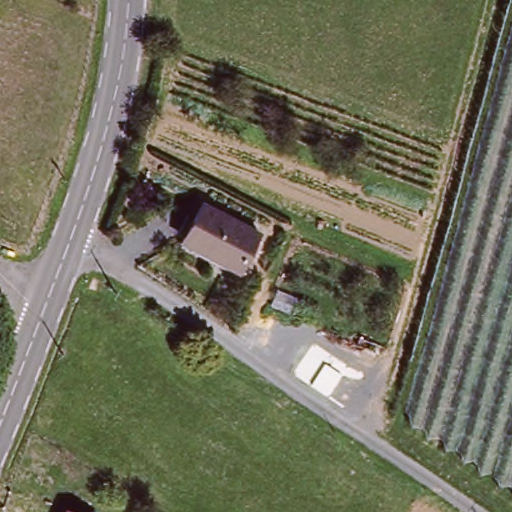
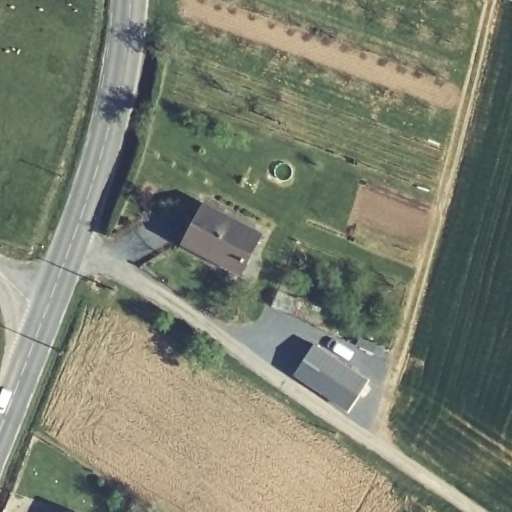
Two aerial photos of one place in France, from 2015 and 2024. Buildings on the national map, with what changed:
unchanged [(262,240),(240,277),(183,244),(205,206),(262,240)]
new [(368,380),(348,410),(294,373),(315,343),(368,380)]
demolished [(63,512),(55,512),(56,509),(63,512)]

